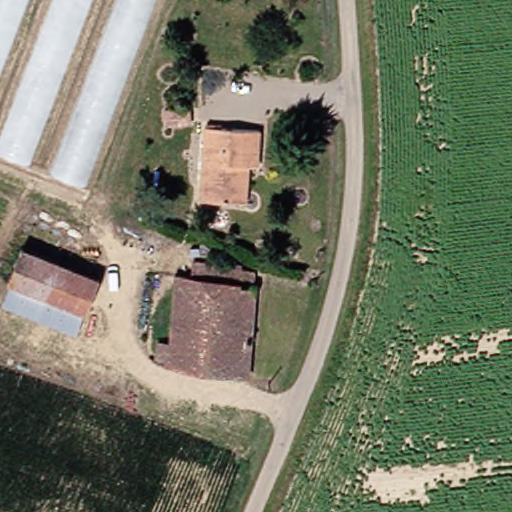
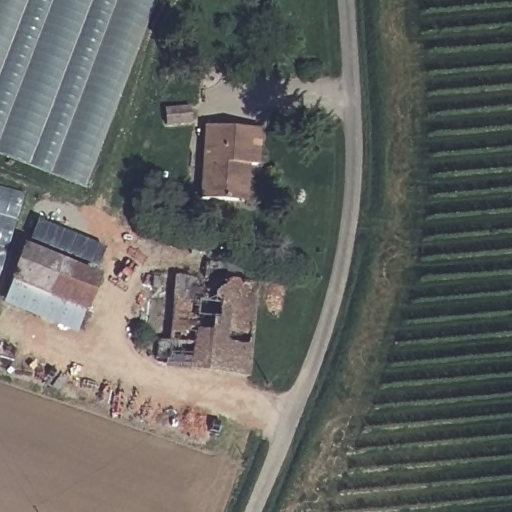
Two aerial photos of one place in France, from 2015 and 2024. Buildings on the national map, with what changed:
unchanged [(17,0),(0,44),(0,0),(17,0)]
unchanged [(0,152),(0,107),(42,0),(79,0),(18,158),(0,152)]
unchanged [(41,170),(107,0),(144,0),(74,183),(41,170)]
unchanged [(228,195),(191,192),(199,119),(256,122),(254,157),(244,157),(241,196),(228,195)]
new [(25,194),(0,273),(0,187),(25,194)]
new [(104,247),(97,266),(29,239),(37,221),(104,247)]
unchanged [(66,331),(0,304),(0,281),(1,277),(14,246),(90,276),(77,308),(66,331)]
unchanged [(148,342),(161,343),(172,252),(245,263),(232,368),(158,366),(159,360),(147,359),(148,342)]

